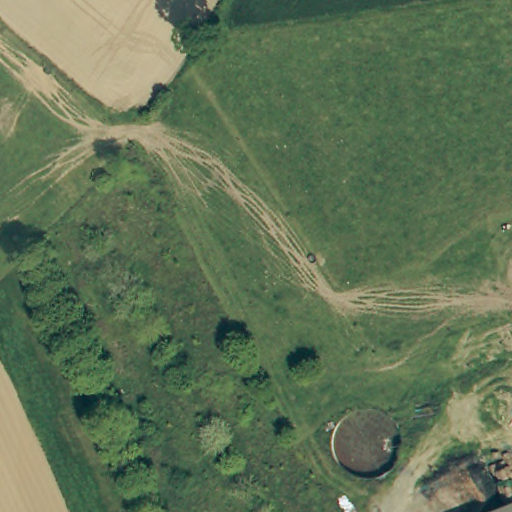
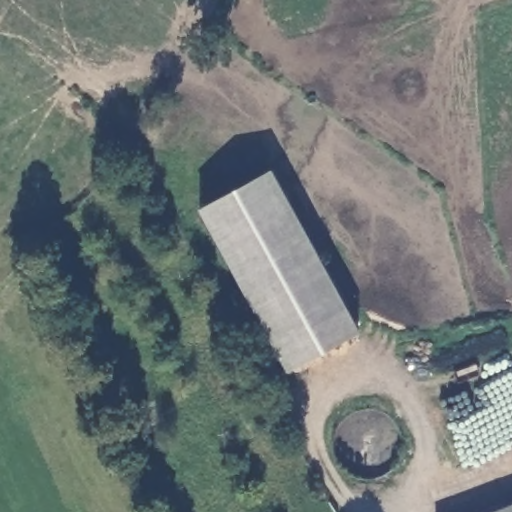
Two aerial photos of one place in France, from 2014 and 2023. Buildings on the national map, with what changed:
new [(271,169),(360,331),(286,372),(199,207),(271,169)]
unchanged [(512,512),(502,512),(512,508),(512,512)]

